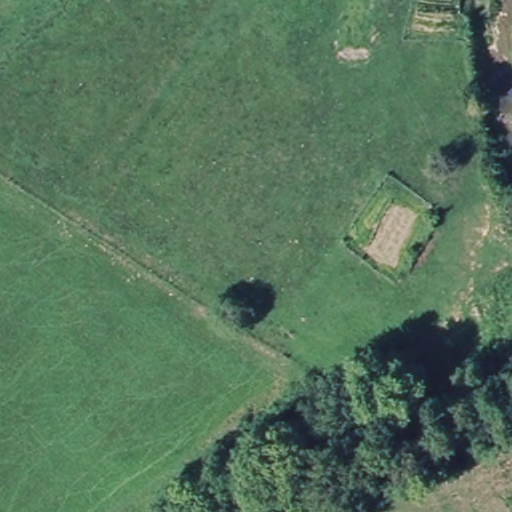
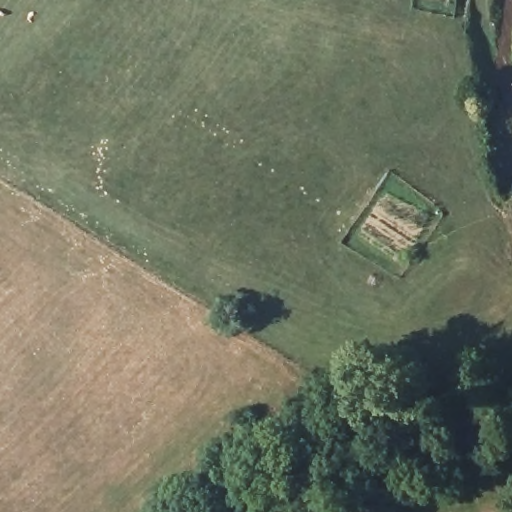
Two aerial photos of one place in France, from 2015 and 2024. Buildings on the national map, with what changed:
unchanged [(512,93),(511,92),(512,90),(512,93)]

